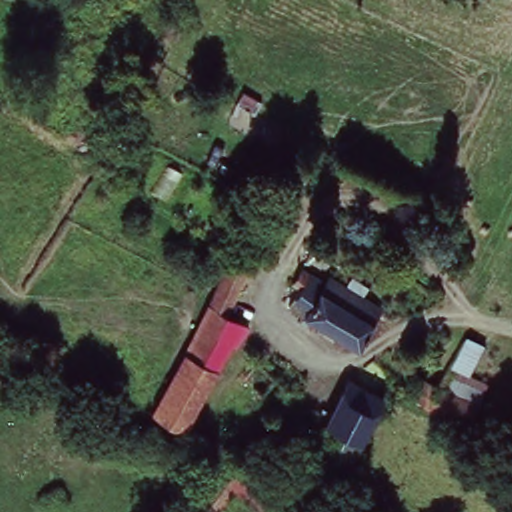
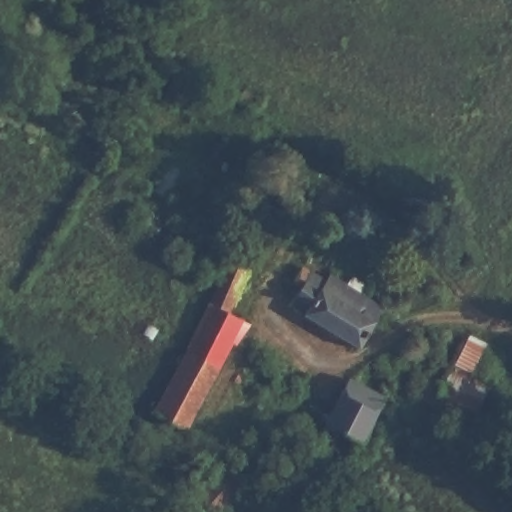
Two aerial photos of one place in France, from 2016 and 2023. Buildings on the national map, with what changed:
unchanged [(251,214),(257,209),(267,215),(261,225),(284,239),(271,260),(268,264),(236,249),(227,244),(243,212),(251,214)]
unchanged [(195,340),(230,263),(249,269),(232,319),(250,331),(240,353),(232,349),(201,401),(184,439),(148,417),(195,340)]
unchanged [(301,277),(306,271),(326,284),(333,274),(350,283),(343,295),(363,309),(341,346),(285,306),(287,299),(275,290),(277,282),(273,276),(281,263),(301,277)]
unchanged [(453,364),(468,339),(490,349),(478,378),(453,364)]
unchanged [(258,369),(247,386),(231,374),(242,357),(258,369)]
unchanged [(448,376),(485,397),(475,418),(435,397),(448,376)]
unchanged [(342,381),(375,397),(355,439),(320,423),(342,381)]
unchanged [(355,439),(332,487),(296,470),(320,423),(355,439)]
unchanged [(234,448),(256,464),(253,468),(234,494),(220,512),(198,512),(188,504),(196,493),(234,448)]
unchanged [(253,468),(285,494),(271,512),(256,512),(234,494),(253,468)]

